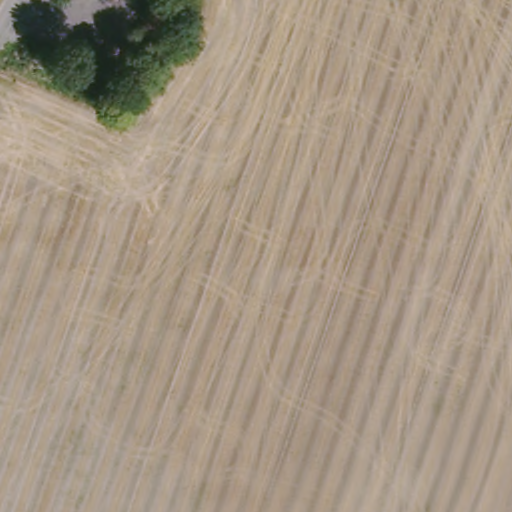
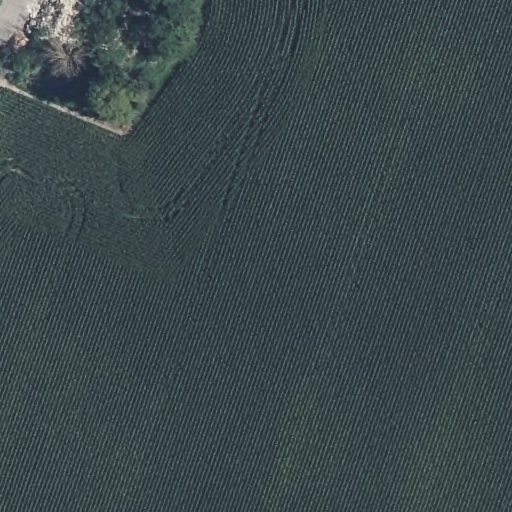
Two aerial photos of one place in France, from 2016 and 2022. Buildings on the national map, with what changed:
unchanged [(192,8),(172,43),(139,27),(155,0),(179,0),(192,8)]

